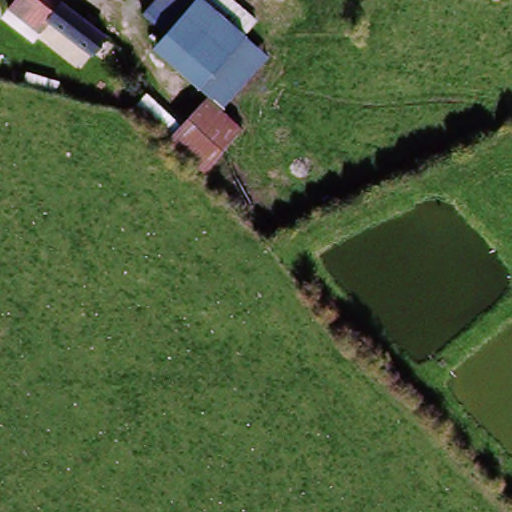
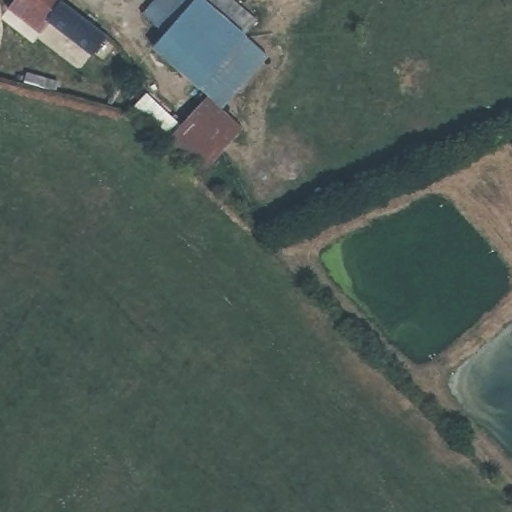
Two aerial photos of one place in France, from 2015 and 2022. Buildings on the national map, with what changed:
unchanged [(2,16),(15,0),(53,0),(101,40),(71,74),(2,16)]
unchanged [(212,0),(274,57),(229,106),(163,48),(201,0),(212,0)]
unchanged [(44,91),(18,83),(22,70),(48,78),(44,91)]
unchanged [(176,121),(206,95),(243,128),(196,179),(129,117),(147,98),(176,121)]

